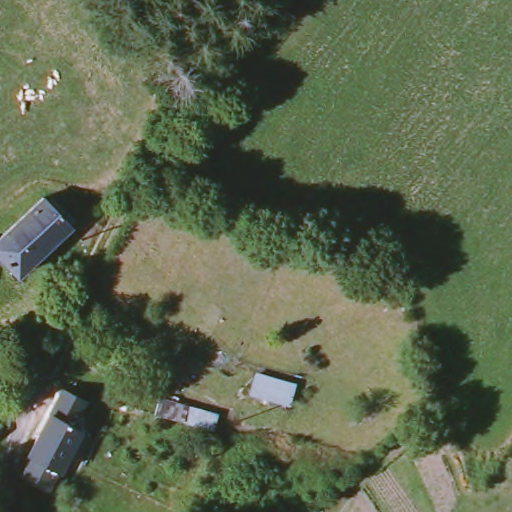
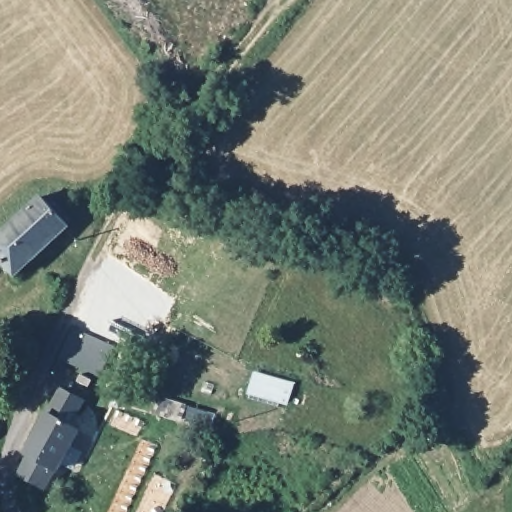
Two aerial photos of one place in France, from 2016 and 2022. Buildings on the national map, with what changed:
unchanged [(44,199),(72,228),(27,273),(5,251),(0,256),(0,239),(44,199)]
unchanged [(84,401),(77,418),(85,424),(55,487),(26,472),(31,453),(63,389),(84,401)]
unchanged [(160,395),(222,414),(216,433),(153,414),(160,395)]

